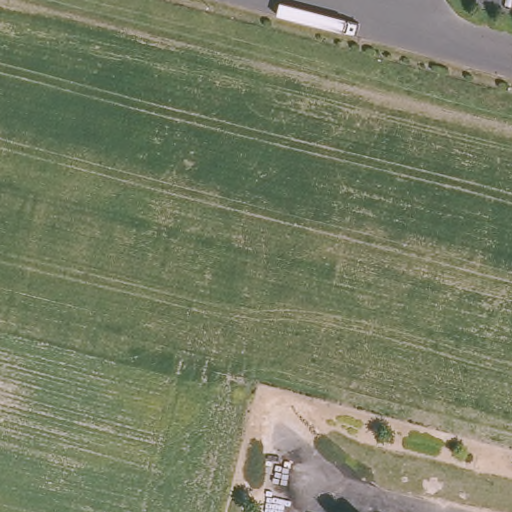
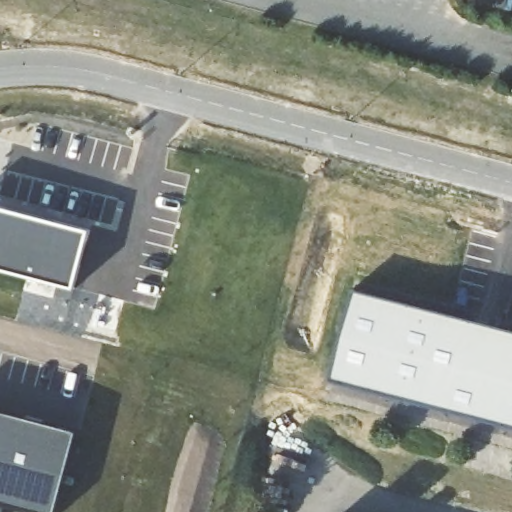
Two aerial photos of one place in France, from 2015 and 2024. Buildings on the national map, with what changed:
new [(0,267),(0,209),(88,232),(73,287),(0,267)]
new [(512,330),(512,427),(332,382),(356,291),(512,330)]
new [(78,432),(55,512),(35,512),(0,503),(0,411),(78,432)]

